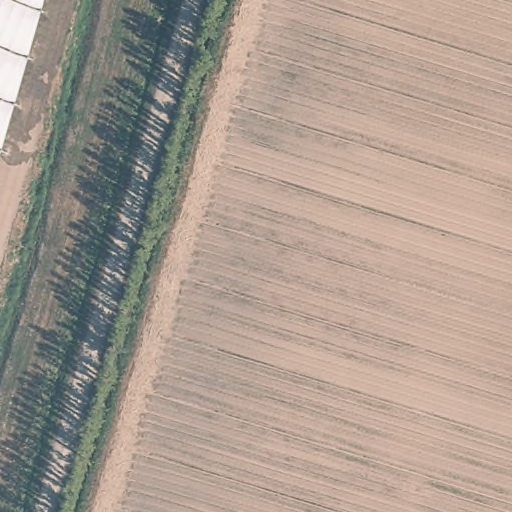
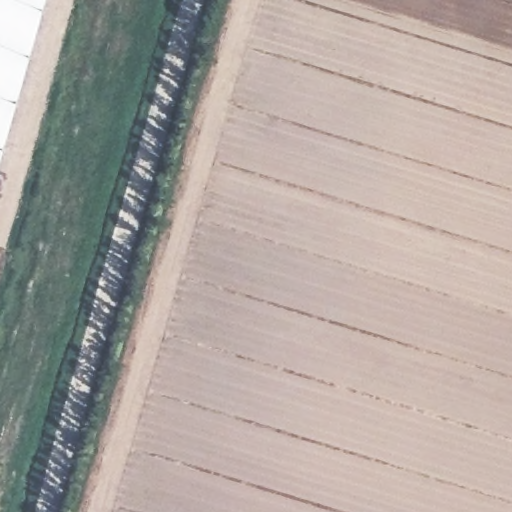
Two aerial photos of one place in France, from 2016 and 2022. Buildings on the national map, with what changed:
unchanged [(0,155),(0,0),(44,0),(0,155)]

